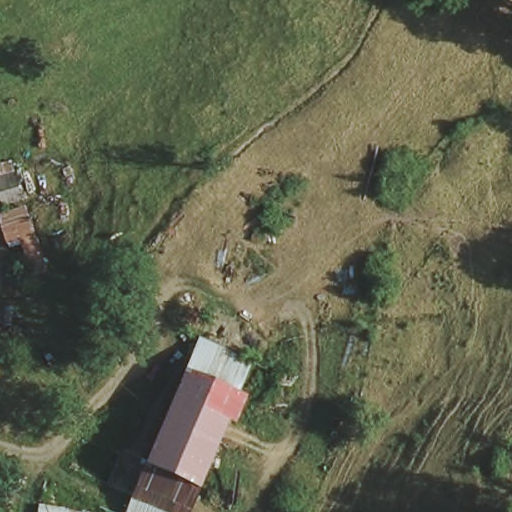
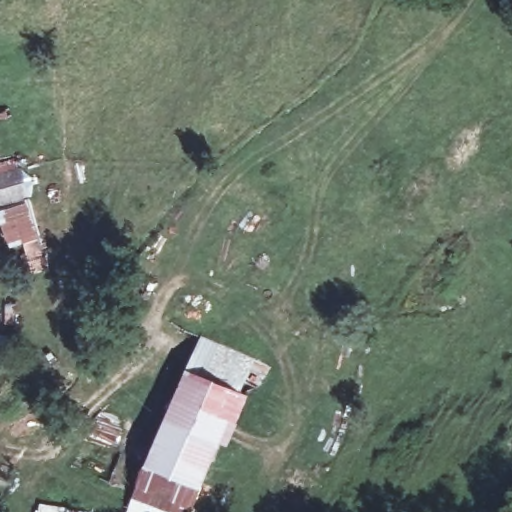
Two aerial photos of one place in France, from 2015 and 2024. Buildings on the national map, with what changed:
unchanged [(17,165),(26,189),(0,198),(0,170),(17,165)]
unchanged [(200,502),(145,480),(184,386),(238,410),(200,502)]
unchanged [(44,505),(84,512),(42,512),(44,505)]

